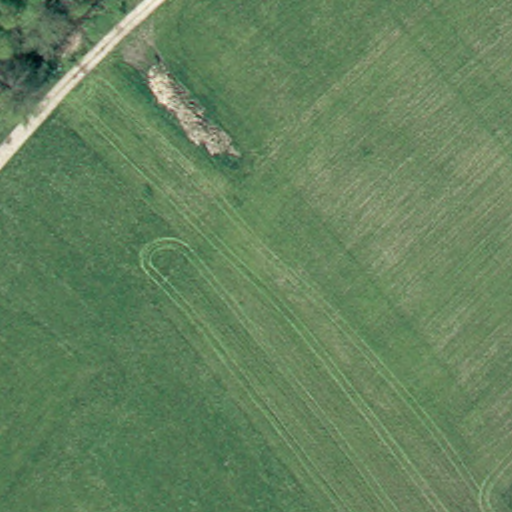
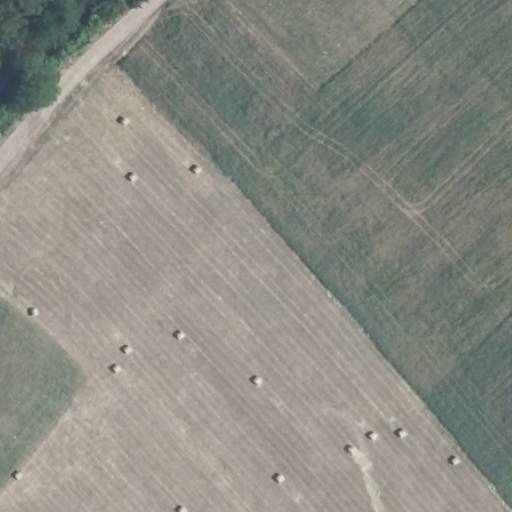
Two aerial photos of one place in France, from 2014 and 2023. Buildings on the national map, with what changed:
[]

